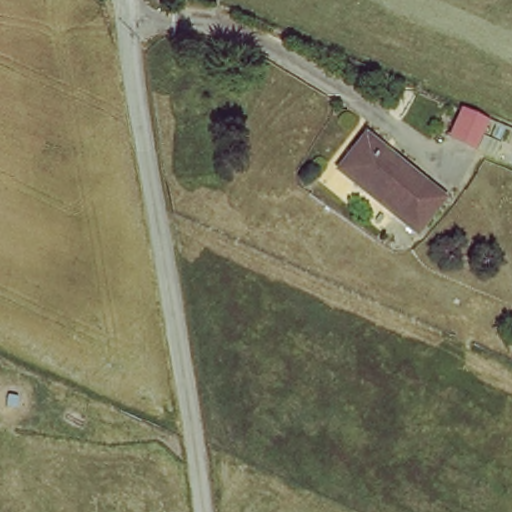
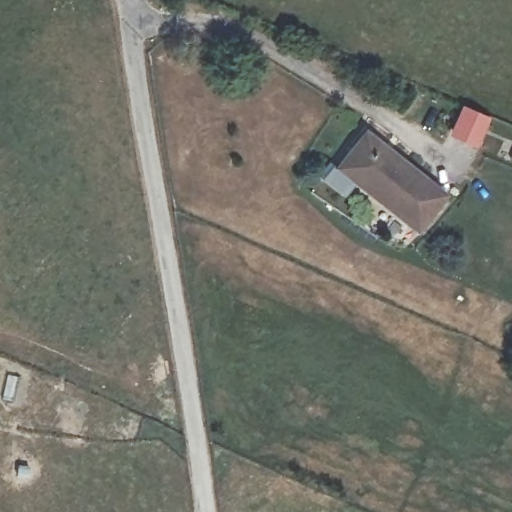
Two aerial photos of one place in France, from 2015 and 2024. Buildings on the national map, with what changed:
unchanged [(485,117),(475,145),(445,135),(456,107),(485,117)]
unchanged [(420,232),(332,165),(366,121),(394,142),(390,147),(449,193),(420,232)]

